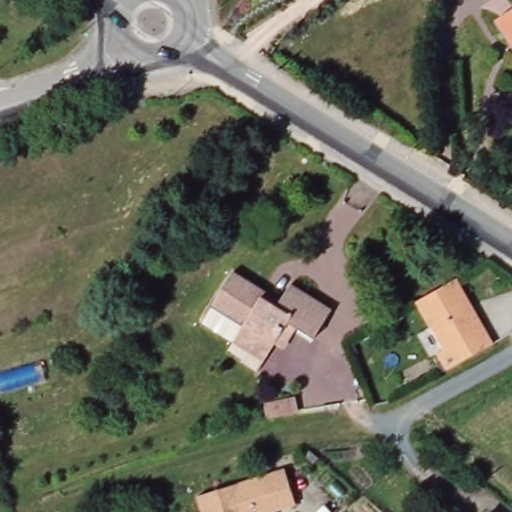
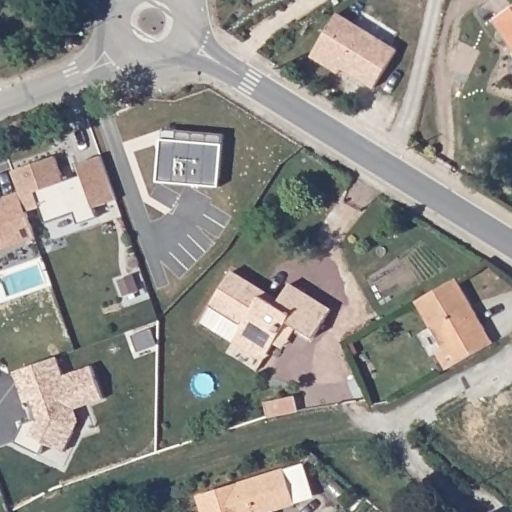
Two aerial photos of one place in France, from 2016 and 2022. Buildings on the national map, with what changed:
unchanged [(496,20),(512,8),(512,44),(496,20)]
new [(338,14),(398,51),(375,88),(342,69),(339,74),(312,57),(338,14)]
new [(56,158),(65,183),(83,176),(79,166),(103,157),(118,202),(96,209),(99,219),(80,226),(75,215),(46,225),(41,209),(28,213),(21,193),(14,173),(56,158)]
new [(6,199),(21,193),(28,213),(37,239),(0,252),(0,204),(4,203),(6,199)]
unchanged [(275,339),(268,350),(238,331),(244,320),(212,301),(233,267),(265,287),(280,297),(291,280),(332,305),(314,334),(297,323),(284,344),(275,339)]
unchanged [(494,339),(447,365),(438,348),(444,345),(417,297),(457,274),(494,339)]
unchanged [(202,318),(212,301),(244,320),(238,331),(268,350),(265,356),(234,337),(202,318)]
new [(64,374),(91,364),(104,400),(76,411),(80,422),(65,453),(46,444),(40,453),(16,441),(25,423),(37,418),(33,401),(25,402),(15,372),(58,356),(64,374)]
unchanged [(298,412),(267,419),(264,404),(295,397),(298,412)]
unchanged [(198,496),(285,469),(296,504),(271,512),(203,512),(198,496)]

